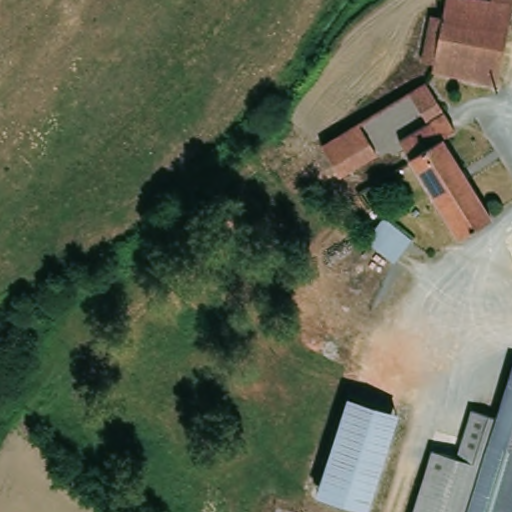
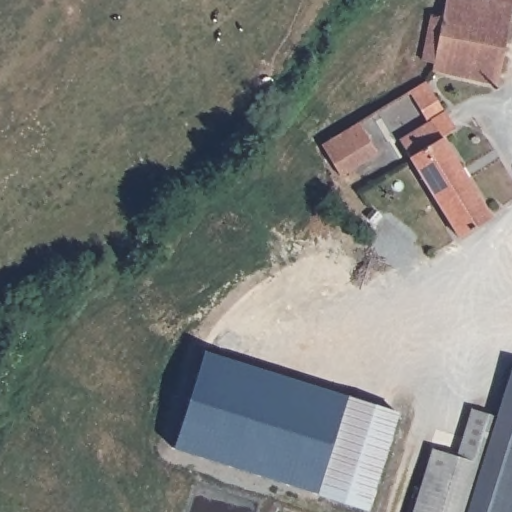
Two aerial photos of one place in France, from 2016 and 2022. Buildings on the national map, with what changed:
unchanged [(497,86),(432,72),(434,62),(423,59),(431,18),(441,20),(445,0),(512,0),(512,9),(497,86)]
unchanged [(486,220),(453,239),(394,140),(422,123),(404,93),(421,83),(440,113),(426,121),(486,220)]
unchanged [(340,177),(321,146),(358,123),(377,154),(340,177)]
new [(173,448),(203,352),(348,398),(318,494),(173,448)]
unchanged [(470,409),(496,417),(512,366),(512,512),(413,512),(432,450),(455,457),(470,409)]
unchanged [(397,413),(367,509),(318,494),(348,398),(397,413)]

